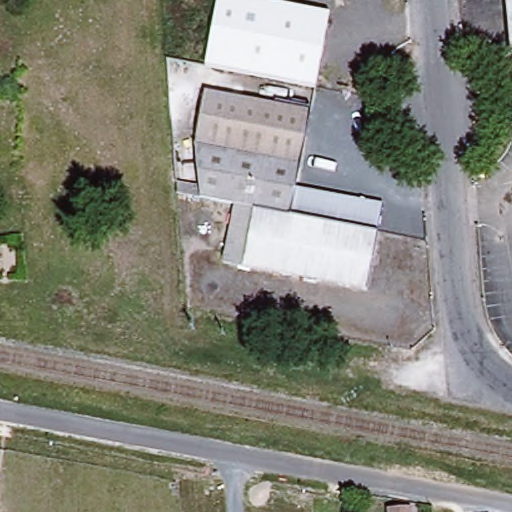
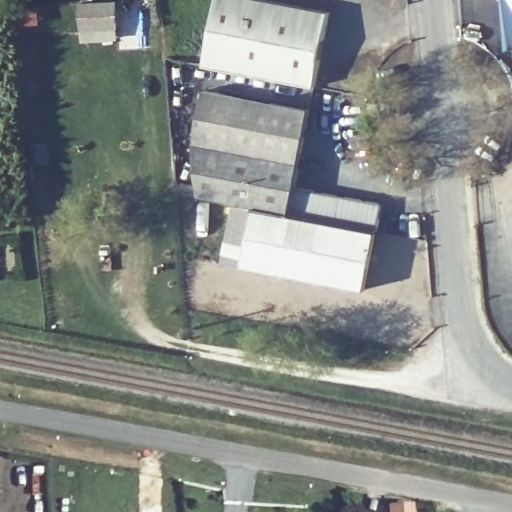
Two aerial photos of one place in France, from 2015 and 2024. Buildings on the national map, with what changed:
new [(106,0),(119,0),(120,38),(83,40),(81,1),(106,0)]
unchanged [(217,0),(276,0),(331,10),(317,87),(205,67),(217,0)]
unchanged [(508,0),(512,0),(512,51),(508,0)]
unchanged [(378,233),(375,232),(233,200),(199,194),(197,141),(206,90),(312,111),(296,188),(383,205),(378,233)]
unchanged [(362,292),(220,259),(233,200),(375,232),(362,292)]

